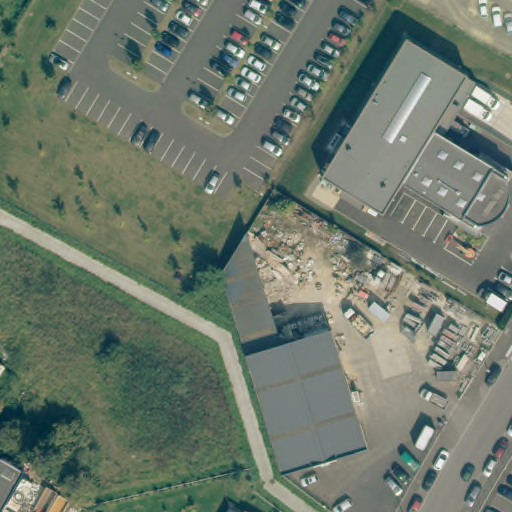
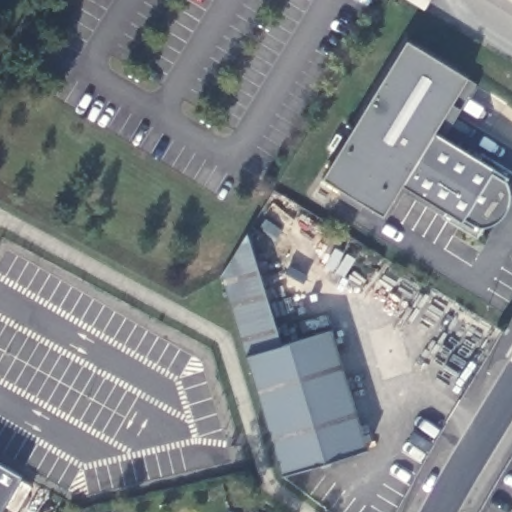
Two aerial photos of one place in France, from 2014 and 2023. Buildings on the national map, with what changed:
unchanged [(512,0),(512,15),(487,0),(512,0)]
unchanged [(322,179),(407,44),(475,84),(440,139),(432,135),(403,188),(383,216),(322,179)]
unchanged [(498,163),(512,171),(512,180),(478,240),(458,230),(462,220),(403,188),(432,135),(494,169),(498,163)]
unchanged [(276,343),(243,353),(216,274),(246,224),(276,343)]
unchanged [(243,353),(276,343),(330,330),(362,449),(279,474),(243,353)]
unchanged [(20,478),(0,511),(0,466),(20,478)]

